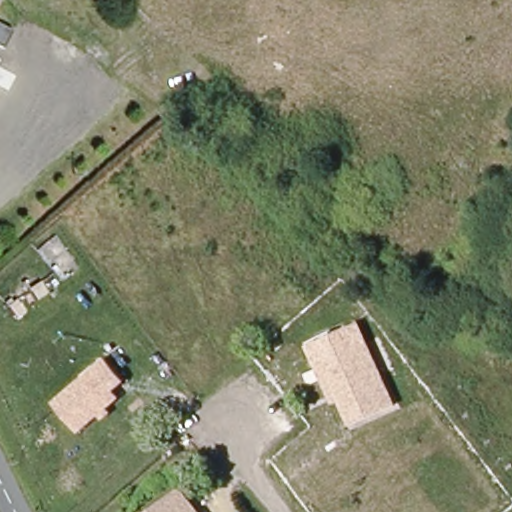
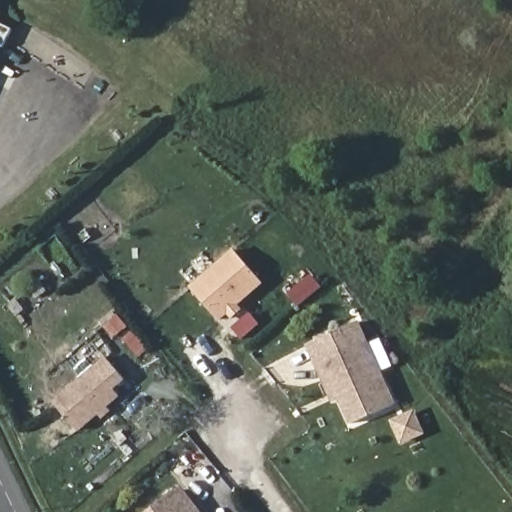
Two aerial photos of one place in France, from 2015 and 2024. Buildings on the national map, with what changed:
unchanged [(0,21),(14,30),(0,55),(0,21)]
new [(232,250),(263,285),(220,322),(190,287),(232,250)]
new [(311,273),(323,286),(299,307),(287,294),(311,273)]
unchanged [(347,424),(316,360),(365,339),(392,404),(347,424)]
unchanged [(115,389),(121,397),(76,433),(53,404),(109,358),(125,379),(115,389)]
unchanged [(202,512),(151,512),(184,488),(202,512)]

